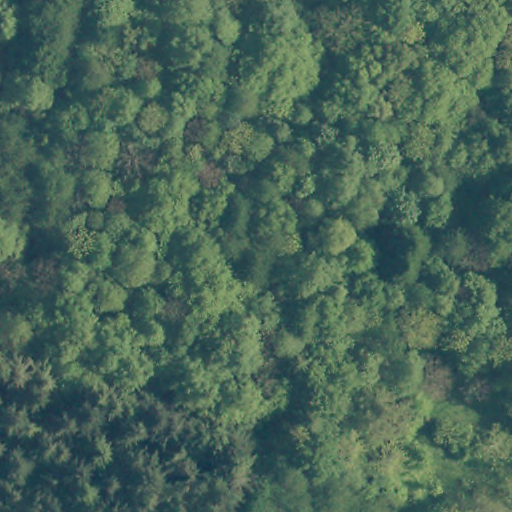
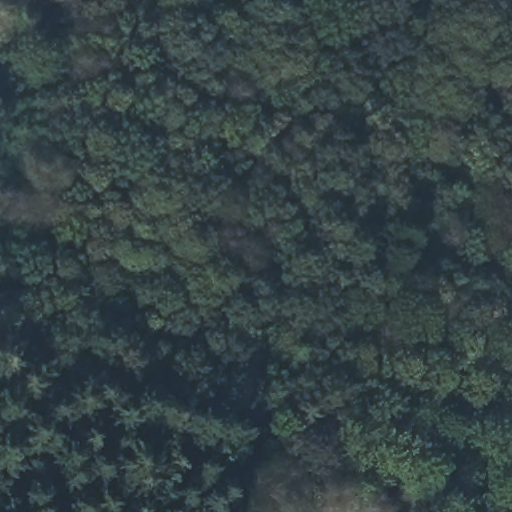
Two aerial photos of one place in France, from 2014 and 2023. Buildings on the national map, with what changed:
unchanged [(345,457),(359,462),(351,490),(337,486),(345,457)]

